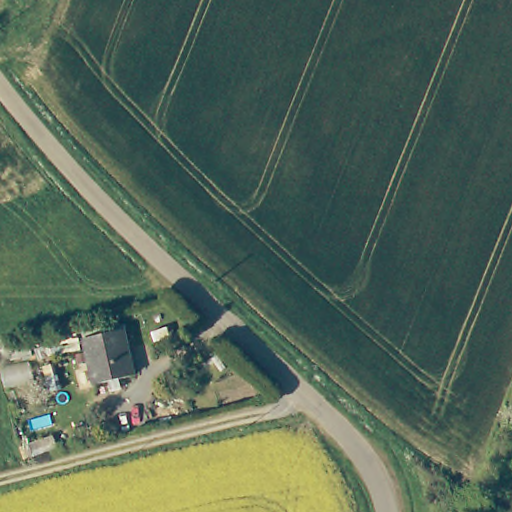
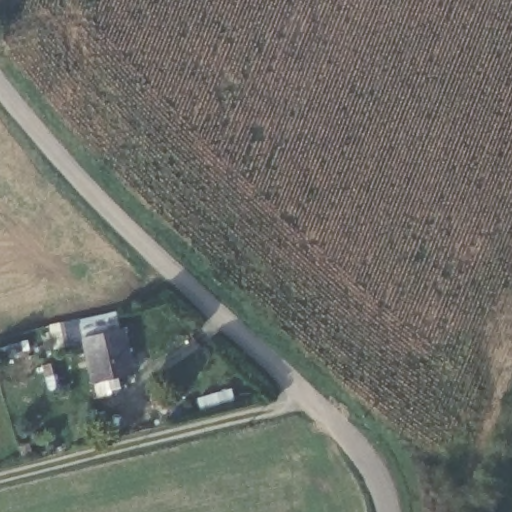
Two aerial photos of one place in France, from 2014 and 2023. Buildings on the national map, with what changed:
unchanged [(121,330),(132,374),(96,382),(85,338),(121,330)]

